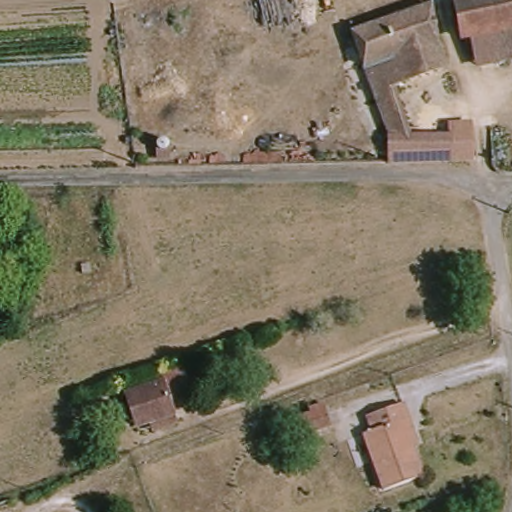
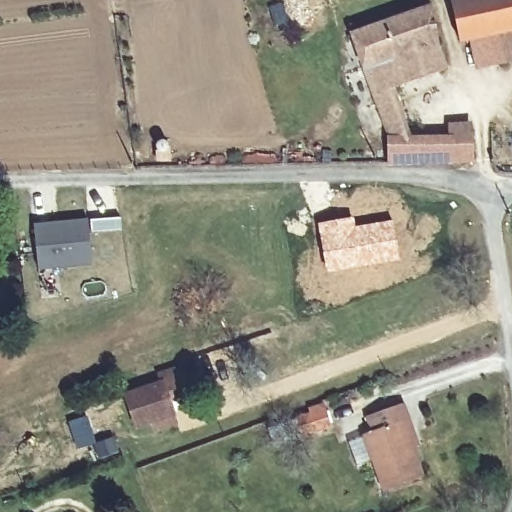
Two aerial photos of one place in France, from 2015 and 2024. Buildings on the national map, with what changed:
unchanged [(460,46),(448,4),(463,0),(512,0),(512,32),(470,44),(460,46)]
unchanged [(392,136),(357,41),(430,19),(445,73),(390,90),(410,142),(455,137),(462,165),(398,177),(392,136)]
unchanged [(512,62),(477,72),(470,44),(512,32),(512,62)]
new [(353,216),(355,225),(392,219),(400,259),(326,272),(317,222),(353,216)]
new [(91,222),(95,265),(41,271),(37,227),(91,222)]
unchanged [(160,428),(156,419),(138,425),(127,393),(163,381),(161,373),(182,366),(191,393),(171,400),(175,413),(178,422),(160,428)]
unchanged [(399,406),(407,423),(399,427),(418,479),(385,493),(362,435),(370,432),(365,418),(399,406)]
unchanged [(325,411),(331,428),(302,440),(296,423),(325,411)]

